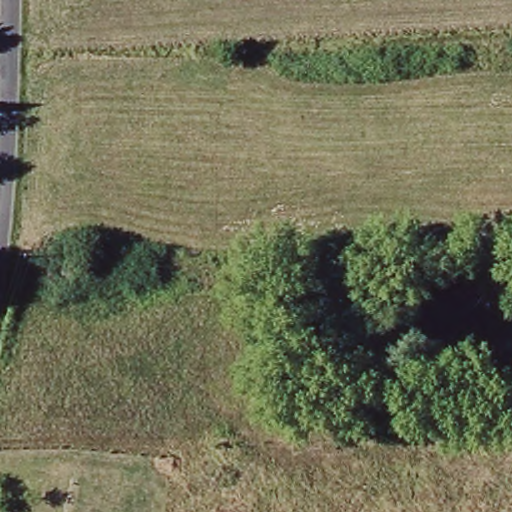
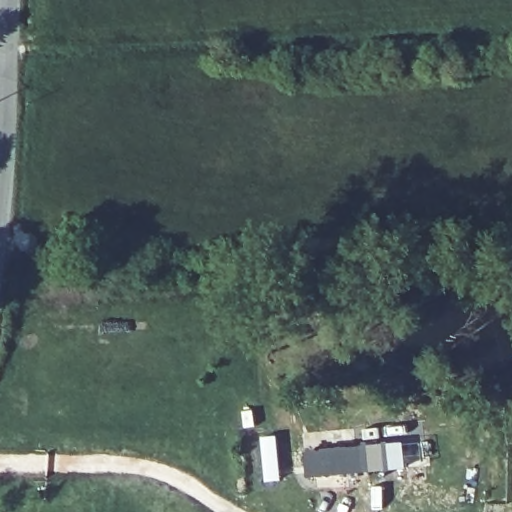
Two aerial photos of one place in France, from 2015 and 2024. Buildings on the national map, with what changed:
new [(356,472),(307,477),(304,449),(355,445),(356,472)]

